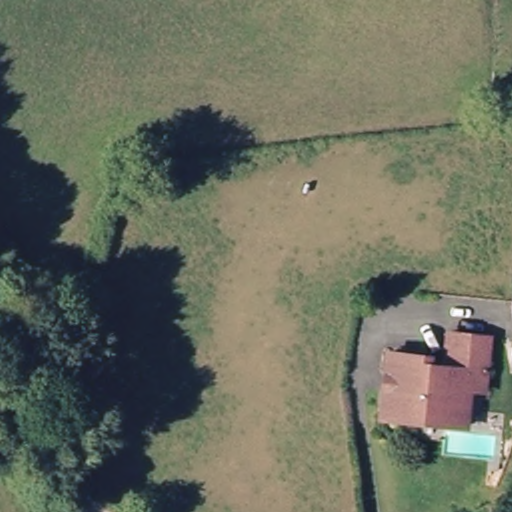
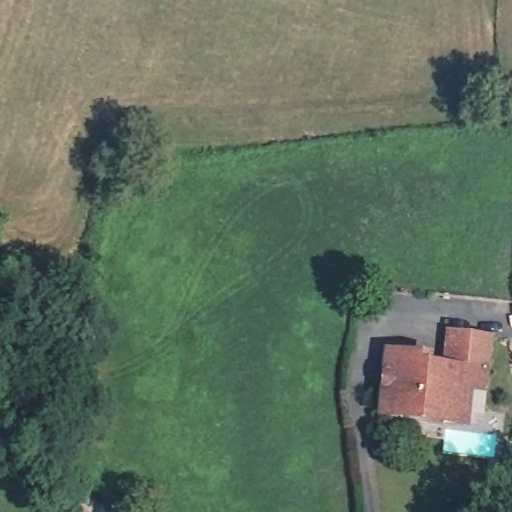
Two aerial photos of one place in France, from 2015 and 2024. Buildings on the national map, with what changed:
unchanged [(395,356),(416,360),(415,367),(427,370),(433,337),(458,342),(480,346),(473,378),(470,395),(450,391),(444,428),(383,417),(395,356)]

